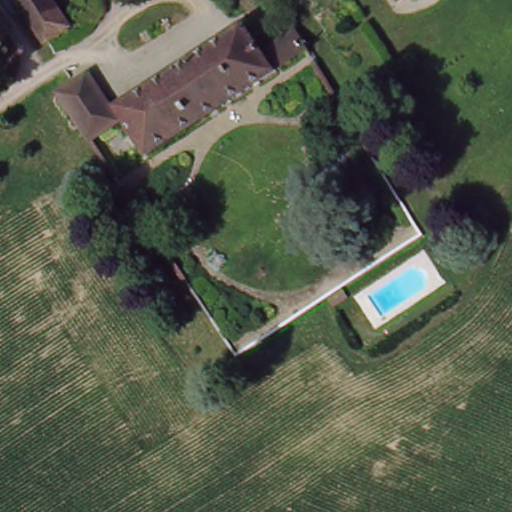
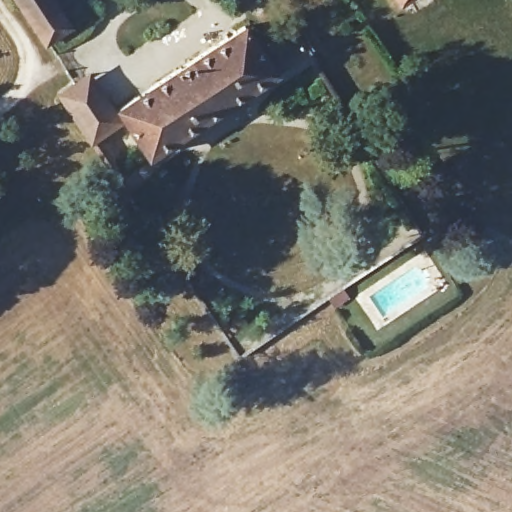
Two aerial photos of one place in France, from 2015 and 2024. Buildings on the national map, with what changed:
unchanged [(51,44),(22,0),(57,0),(76,28),(51,44)]
unchanged [(287,36),(299,56),(143,160),(111,115),(235,30),(253,57),(287,36)]
unchanged [(80,81),(96,105),(65,124),(49,100),(80,81)]
unchanged [(96,105),(112,129),(82,148),(65,124),(96,105)]

